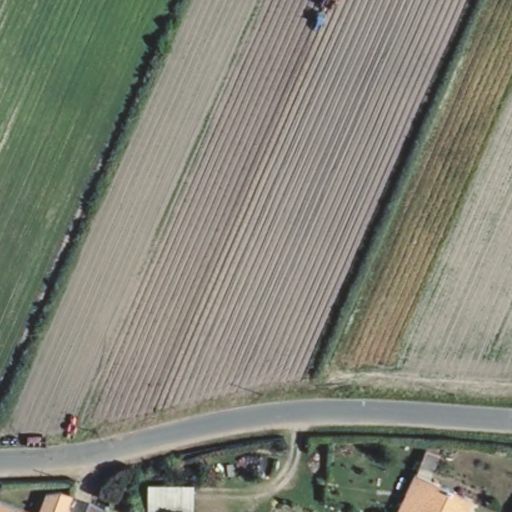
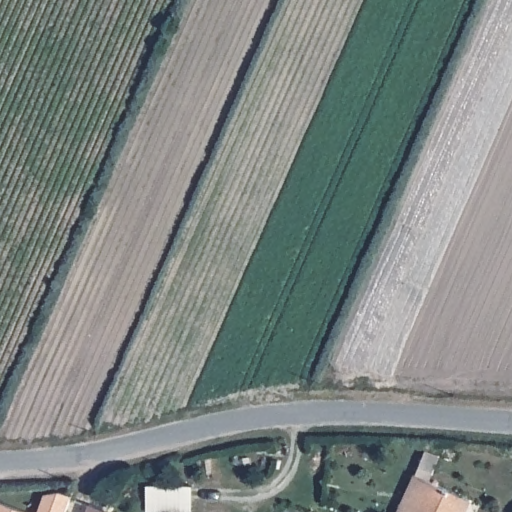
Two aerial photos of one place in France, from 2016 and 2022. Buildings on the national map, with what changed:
unchanged [(450,512),(445,512),(440,510),(439,512),(403,512),(421,473),(460,491),(450,512)]
unchanged [(150,486),(197,486),(198,512),(151,512),(150,486)]
unchanged [(68,512),(44,512),(50,497),(62,494),(74,498),(68,512)]
unchanged [(22,512),(0,512),(0,504),(22,512)]
unchanged [(100,507),(114,512),(98,512),(100,507)]

